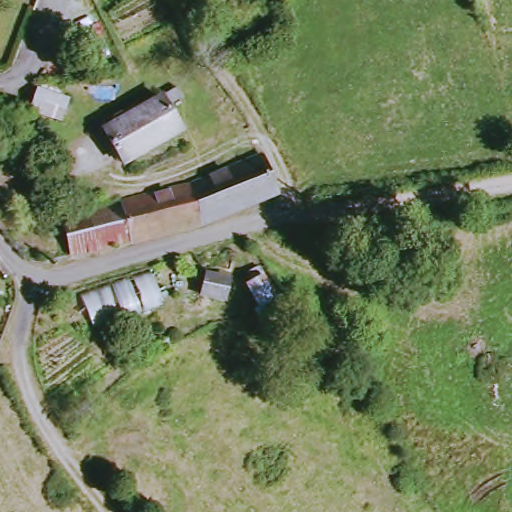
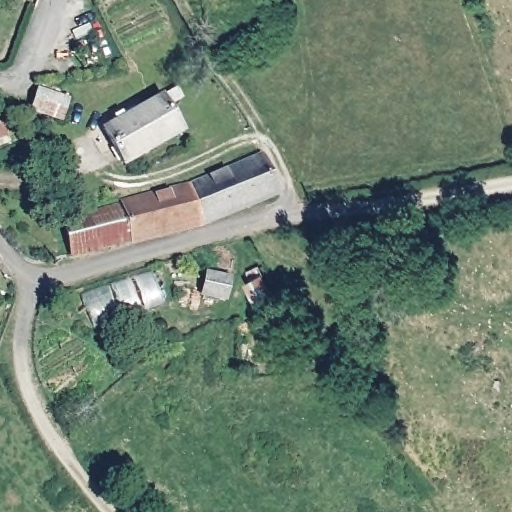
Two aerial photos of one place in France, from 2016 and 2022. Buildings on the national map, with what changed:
unchanged [(40,94),(65,106),(57,126),(29,114),(40,94)]
unchanged [(129,164),(111,132),(166,98),(185,131),(129,164)]
unchanged [(197,189),(197,185),(267,156),(284,193),(210,225),(197,189)]
unchanged [(132,245),(123,206),(193,187),(197,185),(197,189),(210,225),(132,245)]
unchanged [(77,259),(67,220),(123,206),(132,245),(77,259)]
unchanged [(0,263),(0,256),(3,260),(0,263)]
unchanged [(224,299),(199,291),(205,269),(230,276),(224,299)]
unchanged [(96,329),(82,295),(159,271),(170,306),(96,329)]
unchanged [(280,309),(258,318),(252,290),(272,284),(280,309)]

